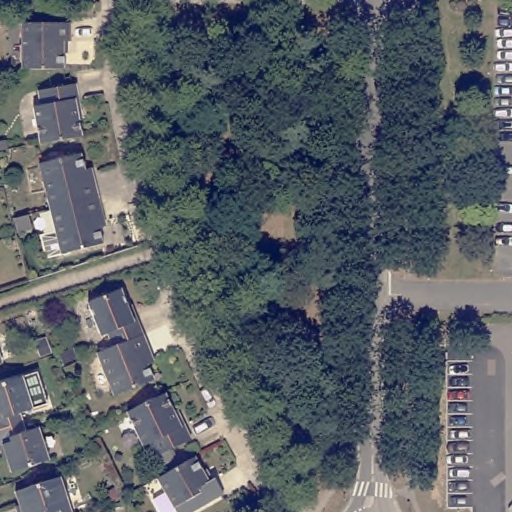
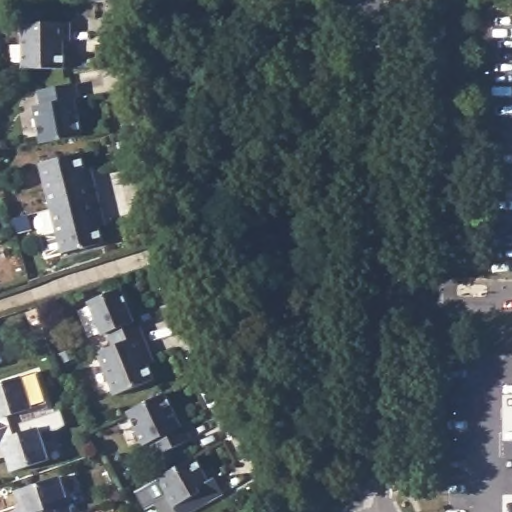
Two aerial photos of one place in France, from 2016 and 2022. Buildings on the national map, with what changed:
unchanged [(24,27),(70,27),(69,52),(64,52),(62,75),(21,74),(24,27)]
unchanged [(33,110),(38,109),(35,94),(78,86),(81,107),(75,109),(81,142),(40,149),(33,110)]
unchanged [(45,162),(83,158),(87,180),(95,179),(98,198),(53,207),(45,162)]
unchanged [(102,218),(96,218),(100,240),(59,246),(53,207),(98,198),(102,218)]
unchanged [(103,336),(98,337),(85,307),(114,295),(127,326),(134,323),(140,339),(110,350),(103,336)]
unchanged [(147,355),(141,357),(149,378),(112,395),(96,355),(110,350),(140,339),(147,355)]
unchanged [(5,356),(0,358),(0,341),(5,356)]
unchanged [(27,410),(18,413),(21,425),(0,431),(0,387),(18,382),(27,410)]
unchanged [(179,430),(182,427),(187,438),(151,453),(148,445),(141,448),(125,414),(164,396),(179,430)]
unchanged [(25,436),(34,433),(43,461),(7,474),(0,453),(0,431),(21,425),(25,436)]
unchanged [(155,510),(172,500),(161,477),(198,458),(211,482),(216,480),(223,496),(194,512),(156,512),(155,510)]
unchanged [(17,494),(58,482),(67,512),(25,512),(17,494)]

